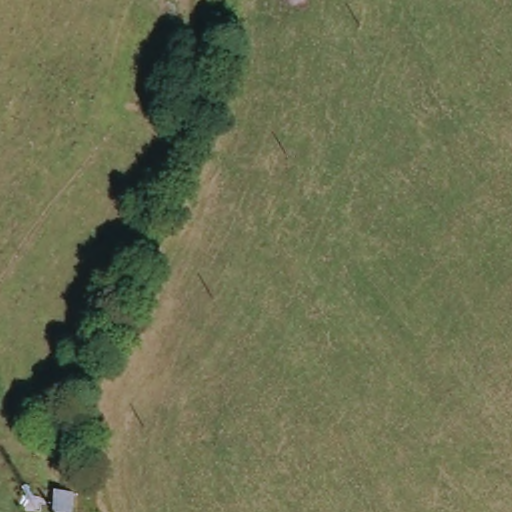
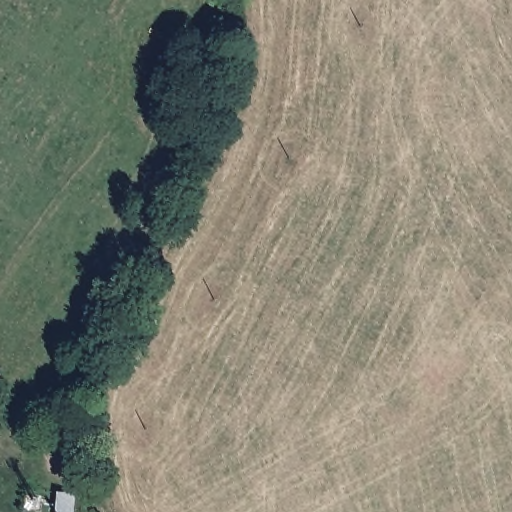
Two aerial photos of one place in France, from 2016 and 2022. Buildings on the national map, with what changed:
unchanged [(66,499),(68,486),(79,487),(78,501),(83,501),(82,512),(58,512),(58,499),(66,499)]

